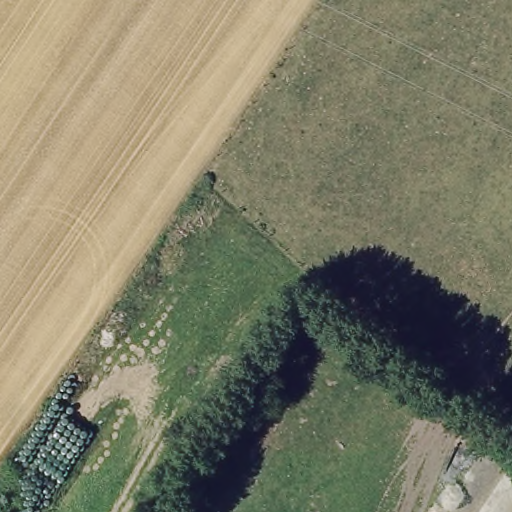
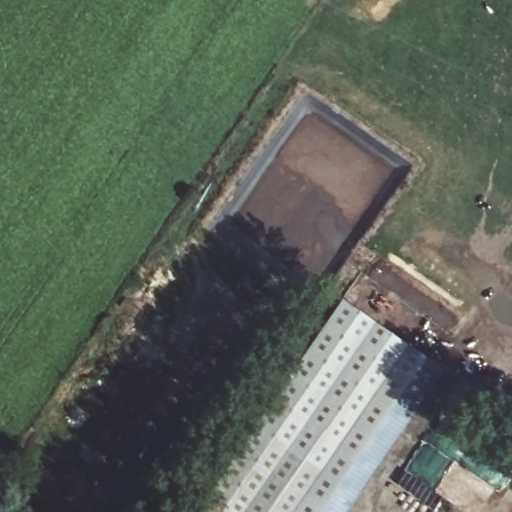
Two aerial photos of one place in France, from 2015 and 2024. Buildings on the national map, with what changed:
new [(204,500),(343,299),(444,370),(346,512),(222,512),(204,500)]

